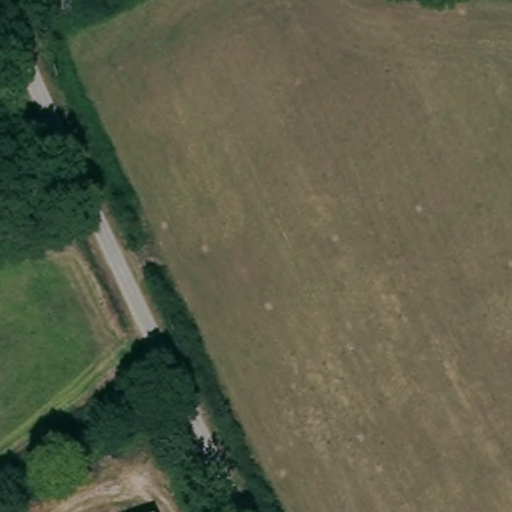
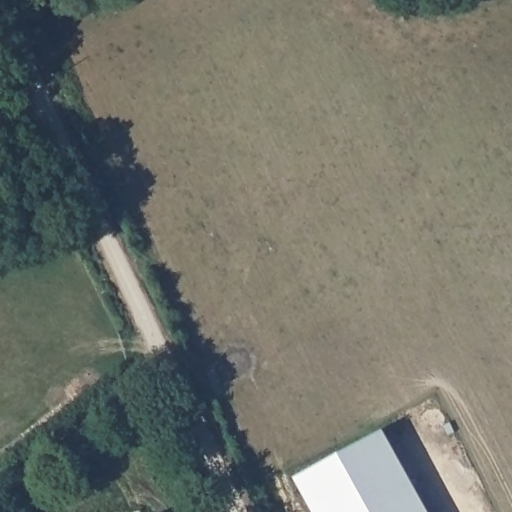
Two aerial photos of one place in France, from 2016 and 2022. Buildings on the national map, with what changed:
new [(295,477),(384,429),(429,512),(315,512),(295,477)]

